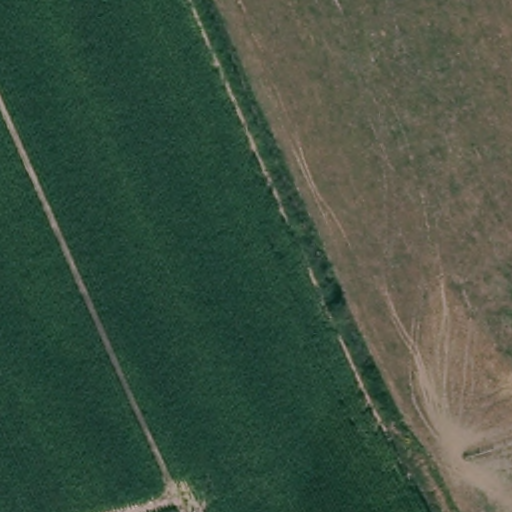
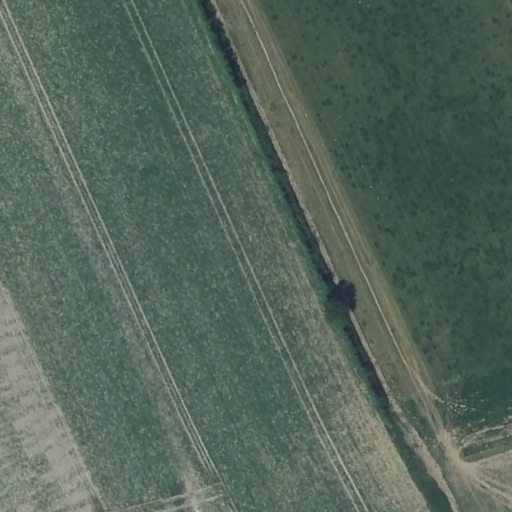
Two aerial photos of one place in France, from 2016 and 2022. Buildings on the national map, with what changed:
[]

